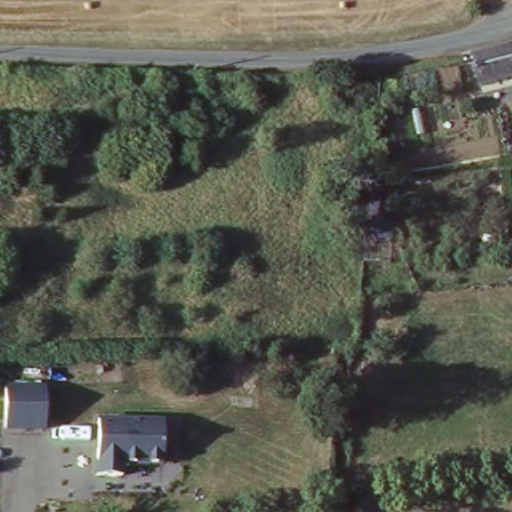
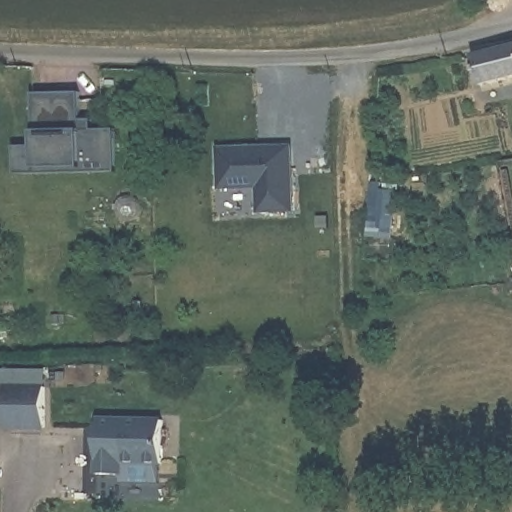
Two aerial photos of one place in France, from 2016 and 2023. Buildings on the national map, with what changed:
demolished [(512,32),(512,66),(481,73),(473,40),(512,32)]
new [(473,54),(512,44),(512,79),(482,87),(473,54)]
new [(15,173),(15,148),(34,145),(33,93),(78,92),(80,119),(90,120),(90,130),(114,129),(115,172),(15,173)]
new [(294,209),(260,213),(259,188),(219,189),(219,148),(293,146),(294,209)]
unchanged [(11,384),(48,383),(49,424),(10,426),(11,384)]
unchanged [(103,416),(167,417),(166,463),(125,460),(125,473),(101,471),(103,416)]

